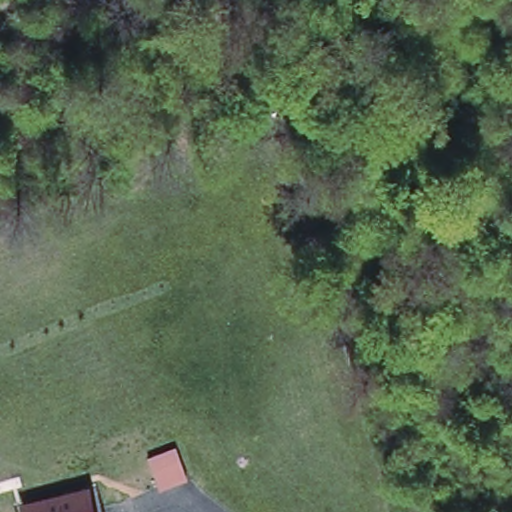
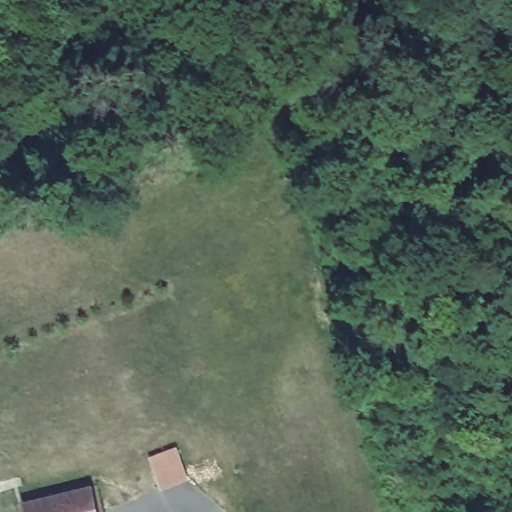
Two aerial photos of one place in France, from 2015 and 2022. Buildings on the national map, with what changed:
unchanged [(177,446),(187,478),(160,488),(149,456),(177,446)]
unchanged [(97,512),(27,512),(24,500),(90,482),(97,512)]

